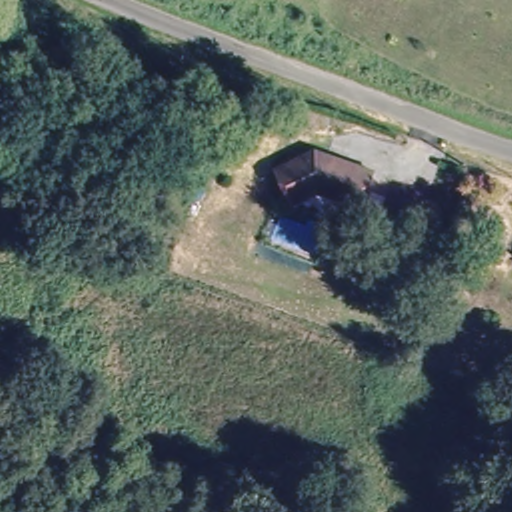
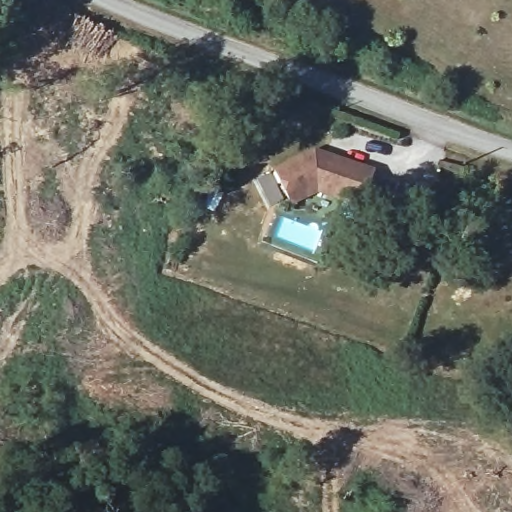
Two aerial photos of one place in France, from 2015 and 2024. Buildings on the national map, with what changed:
unchanged [(276,162),(317,143),(330,148),(328,151),(333,154),(340,151),(377,166),(363,201),(319,184),(292,197),(276,162)]

